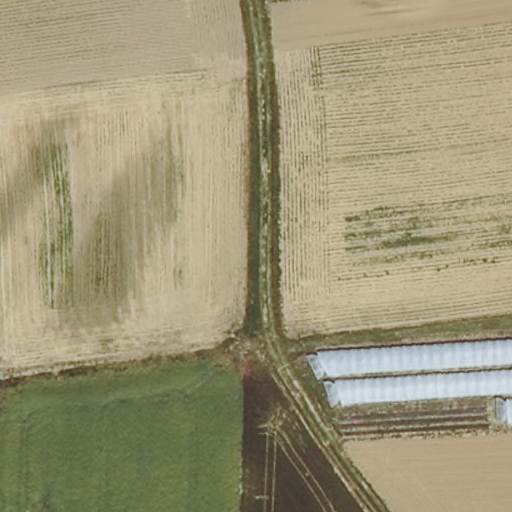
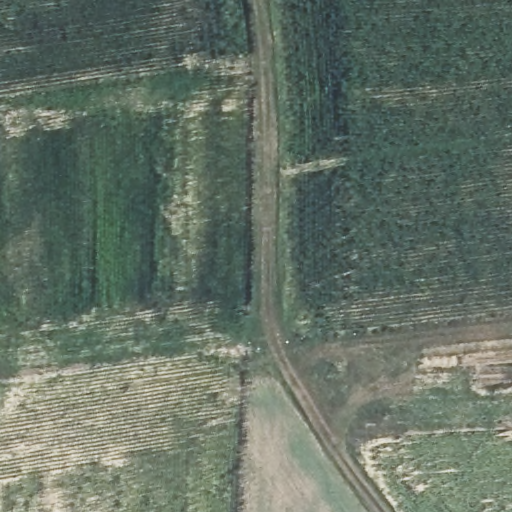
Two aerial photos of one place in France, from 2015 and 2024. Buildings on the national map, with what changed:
demolished [(313,350),(512,338),(512,430),(357,439),(313,350)]

